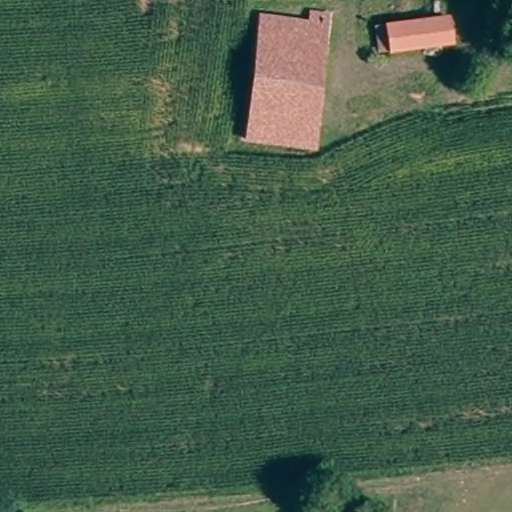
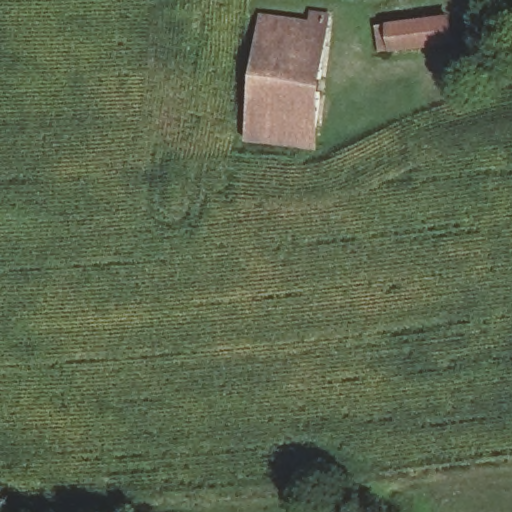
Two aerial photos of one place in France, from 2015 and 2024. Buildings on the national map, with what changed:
unchanged [(258,19),(310,21),(313,5),(326,7),(316,145),(249,140),(258,19)]
unchanged [(450,47),(381,52),(381,27),(387,27),(450,21),(450,47)]

